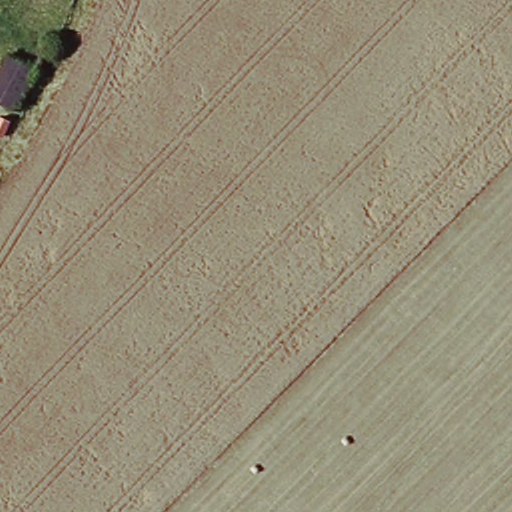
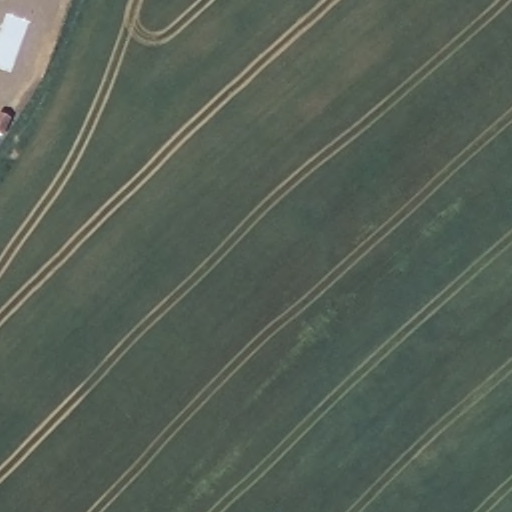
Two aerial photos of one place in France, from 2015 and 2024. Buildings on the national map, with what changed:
unchanged [(0,63),(6,53),(32,68),(10,107),(0,102),(0,63)]

